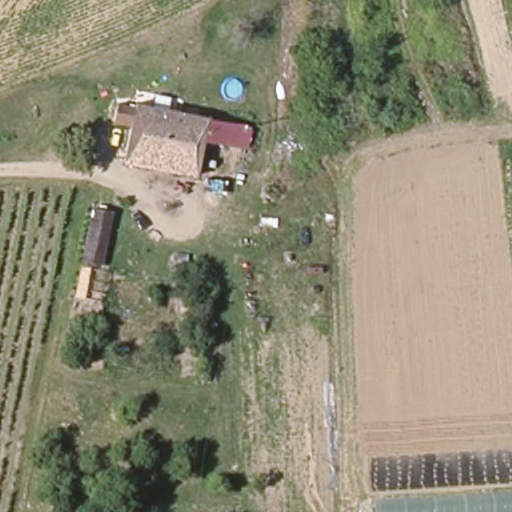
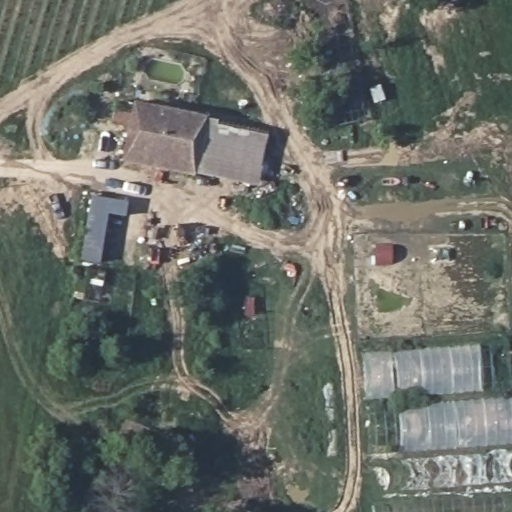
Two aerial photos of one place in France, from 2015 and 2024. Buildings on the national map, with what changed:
unchanged [(123,160),(130,123),(111,118),(114,104),(131,107),(133,99),(207,117),(195,174),(123,160)]
unchanged [(195,174),(207,117),(247,126),(237,183),(195,174)]
unchanged [(78,268),(90,211),(108,214),(96,272),(78,268)]
new [(366,411),(397,409),(396,397),(364,400),(362,353),(505,344),(509,397),(512,396),(512,444),(368,455),(366,411)]

